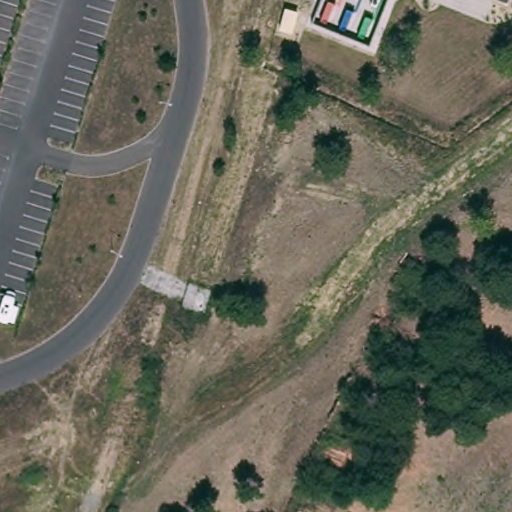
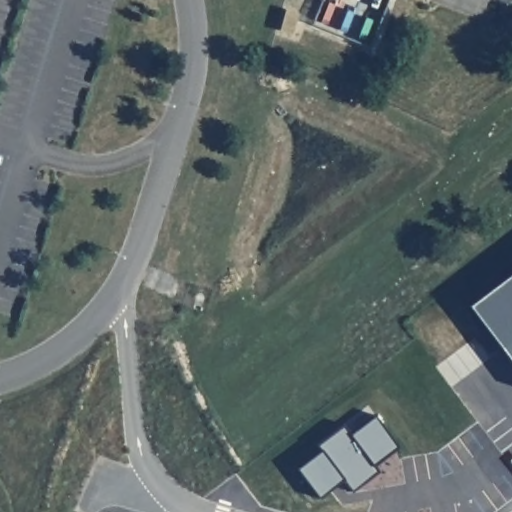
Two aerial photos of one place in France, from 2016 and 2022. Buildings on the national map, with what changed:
unchanged [(507,3),(500,0),(509,0),(507,3)]
new [(512,364),(466,304),(512,270),(512,364)]
new [(314,450),(310,445),(338,424),(345,433),(372,412),(399,448),(373,469),(377,475),(349,496),(338,482),(311,503),(287,471),(314,450)]

